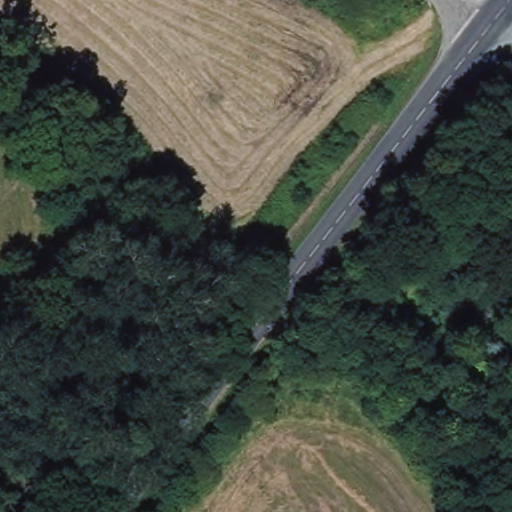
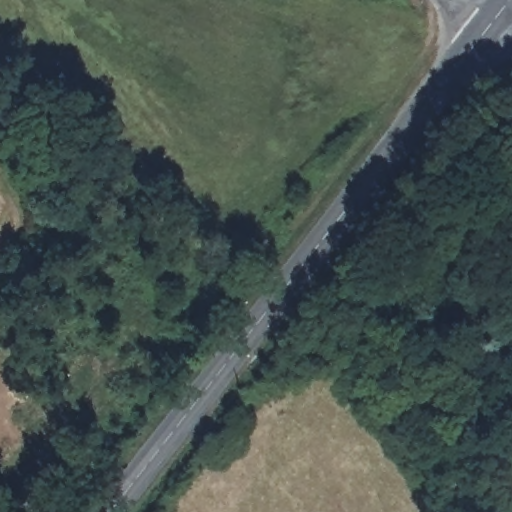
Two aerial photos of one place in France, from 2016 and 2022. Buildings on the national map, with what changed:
[]

